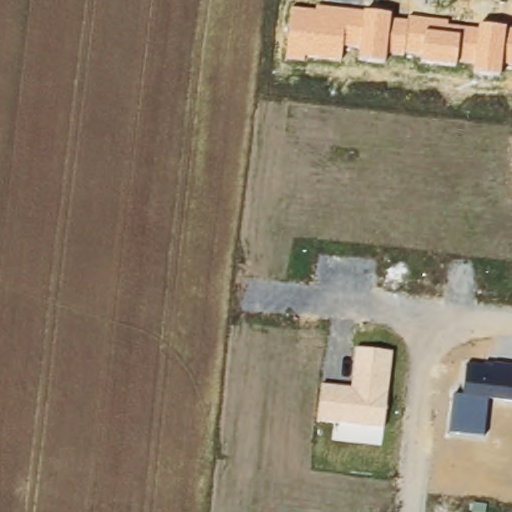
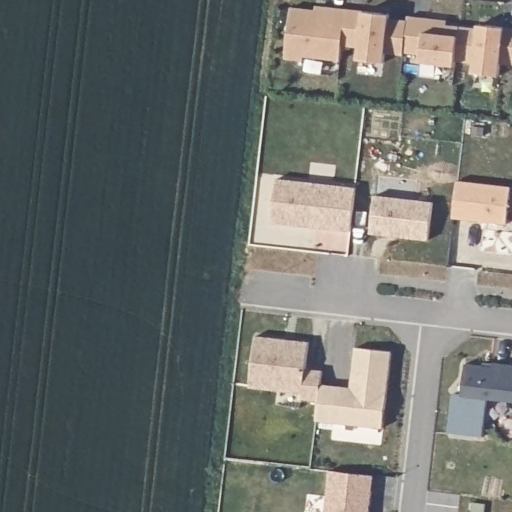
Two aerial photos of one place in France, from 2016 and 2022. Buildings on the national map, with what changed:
unchanged [(499,77),(473,75),(474,65),(457,62),(457,66),(420,62),(420,55),(403,52),(403,56),(385,54),(384,65),(358,62),(359,48),(343,46),(341,61),(305,59),(305,62),(287,60),(290,8),(316,10),(316,5),(389,14),(389,19),(407,20),(408,16),(449,20),(448,25),(478,30),(479,24),(512,28),(512,68),(500,67),(499,77)]
new [(271,222),(276,179),(355,188),(350,231),(328,229),(316,227),(271,222)]
new [(456,181),(510,187),(506,224),(452,218),(456,181)]
new [(374,195),(432,202),(427,240),(370,234),(374,195)]
new [(309,341),(307,367),(323,370),(321,384),(319,400),(301,398),(302,391),(251,387),(256,335),(309,341)]
unchanged [(393,351),(385,430),(316,423),(321,384),(351,387),(355,348),(393,351)]
unchanged [(485,437),(448,433),(452,395),(462,396),(465,361),(486,363),(487,361),(512,363),(512,403),(489,400),(485,437)]
new [(328,471),(373,476),(369,512),(324,512),(328,471)]

